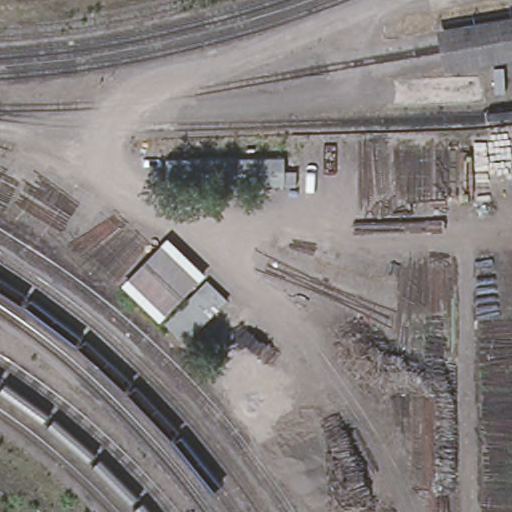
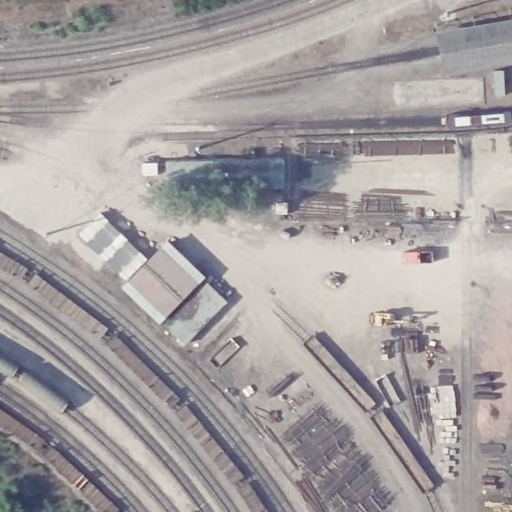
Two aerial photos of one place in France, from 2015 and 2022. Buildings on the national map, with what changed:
unchanged [(434,29),(512,16),(512,69),(443,80),(434,29)]
unchanged [(111,193),(109,170),(244,163),(244,156),(354,150),(355,173),(244,179),(246,194),(111,202),(111,193)]
unchanged [(228,302),(186,344),(162,323),(160,325),(120,287),(167,238),(228,302)]

